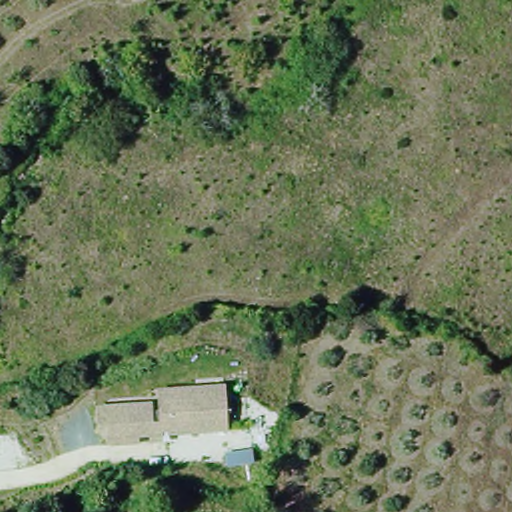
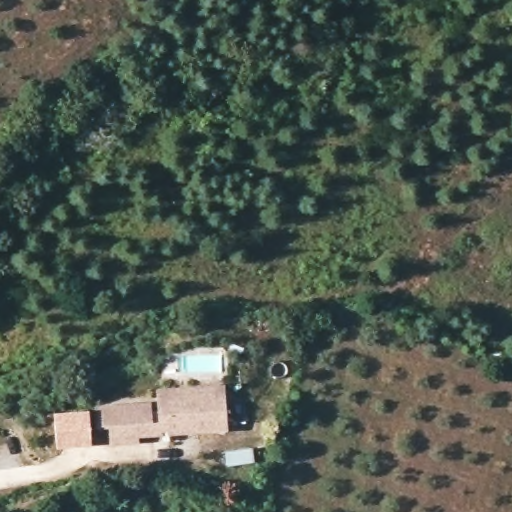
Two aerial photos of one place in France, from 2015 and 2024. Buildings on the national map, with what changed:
unchanged [(100,401),(153,398),(154,418),(161,418),(161,385),(230,381),(232,427),(143,433),(142,439),(114,441),(112,425),(101,425),(100,401)]
new [(55,446),(53,411),(89,410),(90,446),(55,446)]

